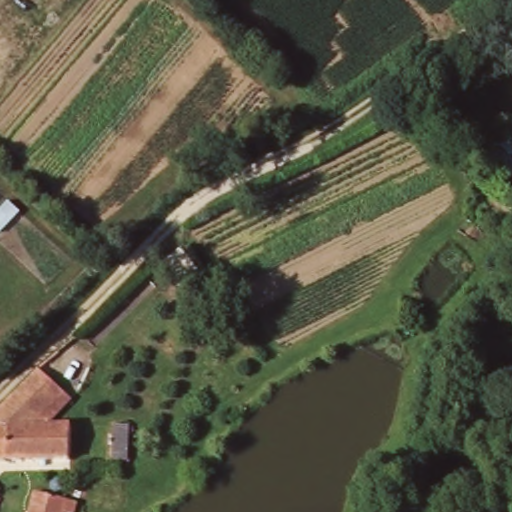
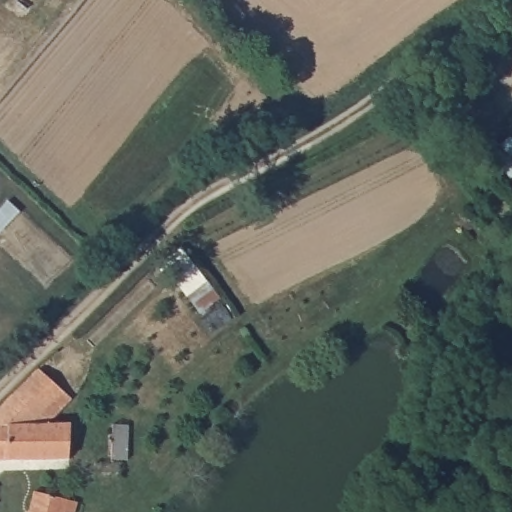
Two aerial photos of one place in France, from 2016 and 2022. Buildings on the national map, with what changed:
unchanged [(50,425),(73,425),(74,461),(37,462),(0,462),(0,409),(40,369),(47,375),(74,400),(50,425)]
unchanged [(133,421),(135,456),(118,455),(118,420),(133,421)]
unchanged [(81,503),(79,512),(34,512),(38,492),(41,493),(69,500),(81,503)]

